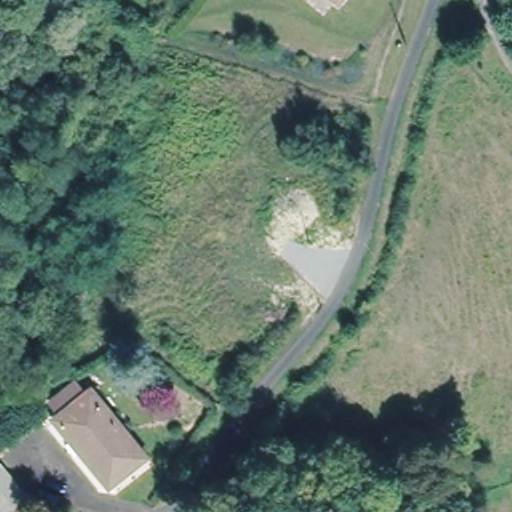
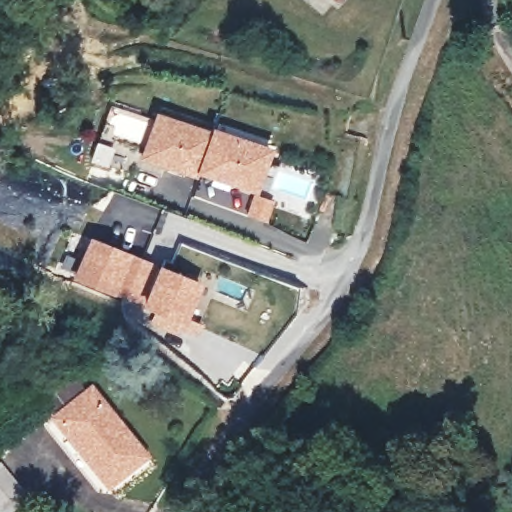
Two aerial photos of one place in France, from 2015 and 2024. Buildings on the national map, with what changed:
new [(157,117),(212,136),(200,172),(199,175),(144,157),(157,117)]
new [(212,136),(213,132),(268,150),(255,191),(200,172),(212,136)]
new [(91,242),(136,260),(121,297),(76,278),(91,242)]
new [(136,260),(206,287),(191,325),(121,297),(136,260)]
unchanged [(138,459),(108,483),(55,417),(90,388),(127,433),(144,455),(138,459)]
unchanged [(11,512),(0,512),(0,464),(28,498),(11,512)]

